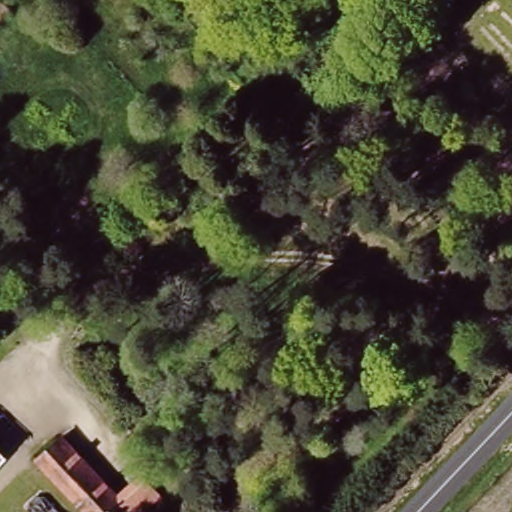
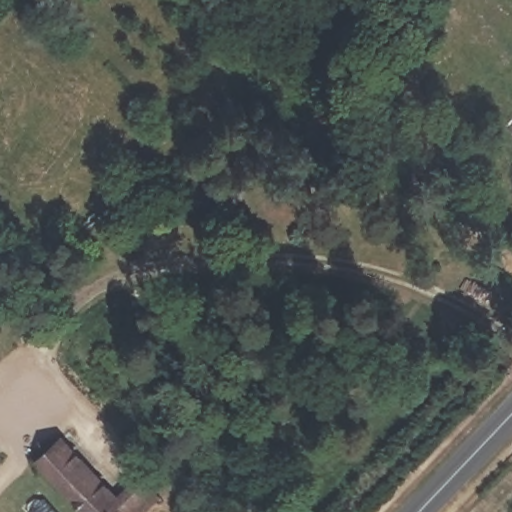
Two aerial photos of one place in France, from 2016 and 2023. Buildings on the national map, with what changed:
unchanged [(114,493),(136,473),(156,495),(136,512),(84,512),(34,454),(58,432),(114,493)]
unchanged [(7,452),(0,460),(0,446),(7,452)]

